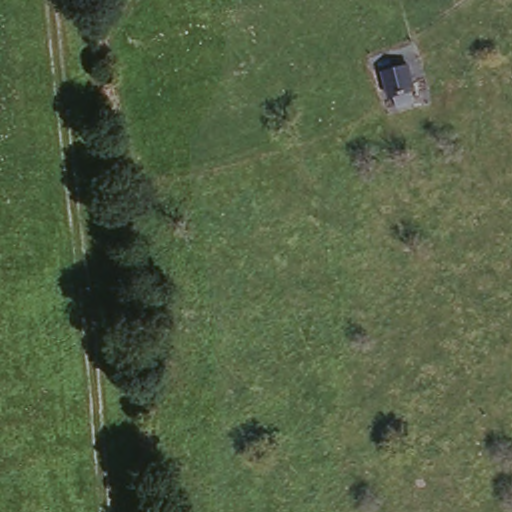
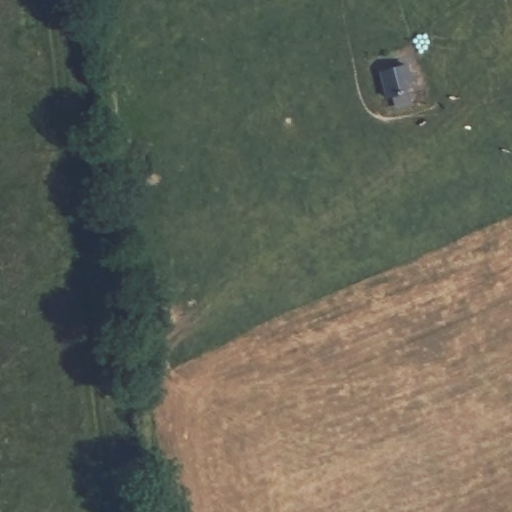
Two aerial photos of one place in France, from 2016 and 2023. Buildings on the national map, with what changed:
unchanged [(397,63),(415,95),(404,102),(401,95),(393,98),(380,71),(397,63)]

